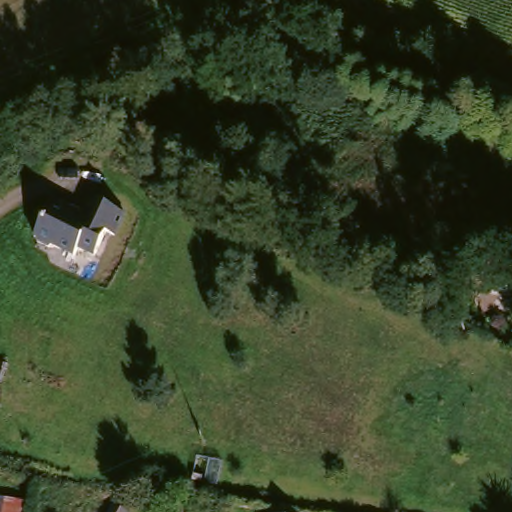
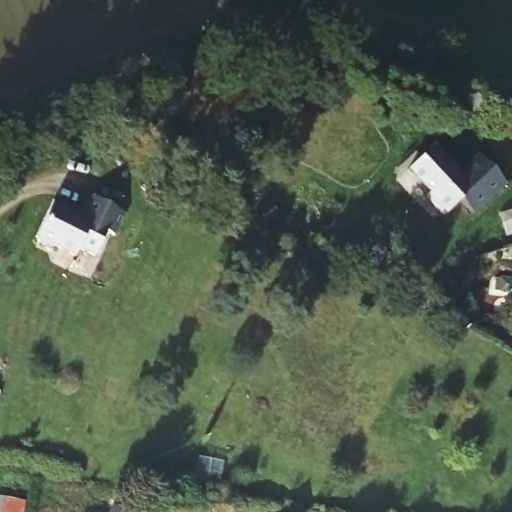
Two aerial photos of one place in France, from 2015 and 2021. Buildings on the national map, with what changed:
new [(435,146),(461,174),(481,155),(509,185),(476,215),(463,200),(445,217),(433,203),(438,198),(411,168),(435,146)]
unchanged [(85,211),(93,194),(127,209),(117,231),(109,227),(98,252),(81,245),(78,253),(57,243),(53,245),(41,240),(40,236),(38,235),(55,198),(85,211)]
unchanged [(130,510),(129,512),(105,512),(113,500),(130,510)]

